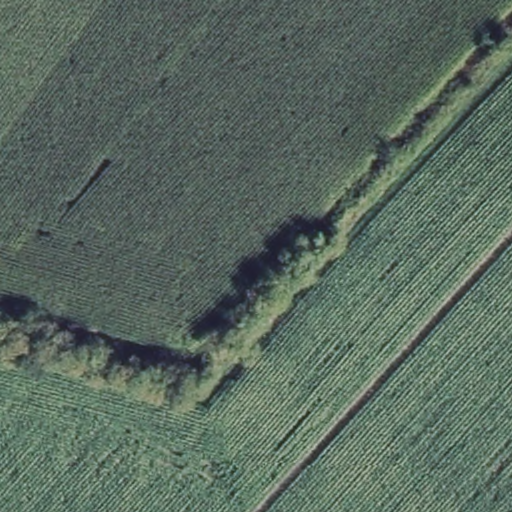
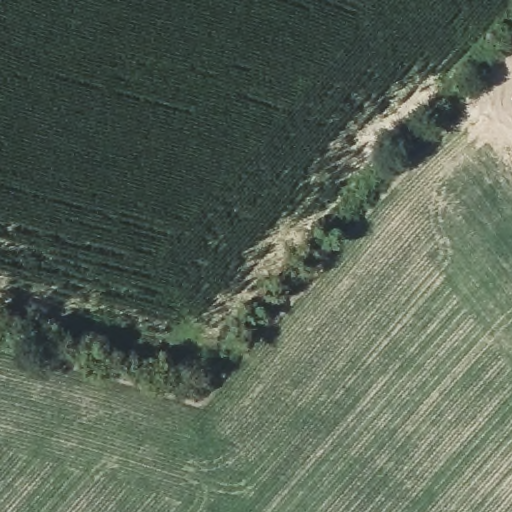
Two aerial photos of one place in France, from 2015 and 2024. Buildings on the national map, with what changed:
[]

